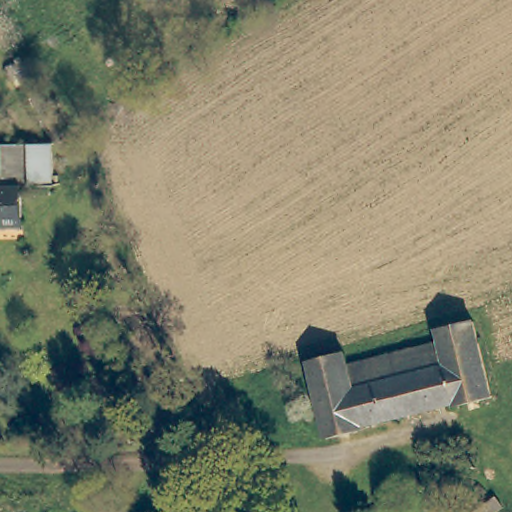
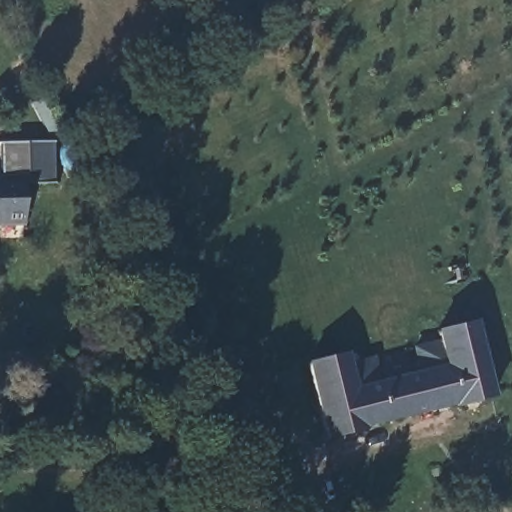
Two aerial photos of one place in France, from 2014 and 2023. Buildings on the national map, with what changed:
unchanged [(48,144),(49,185),(20,186),(19,221),(0,221),(0,145),(48,144)]
unchanged [(450,416),(449,410),(366,427),(367,436),(321,442),(307,370),(347,362),(351,372),(435,353),(432,341),(467,333),(480,382),(485,408),(450,416)]

